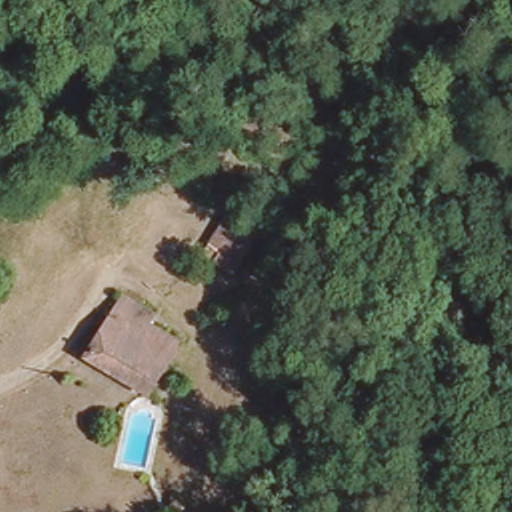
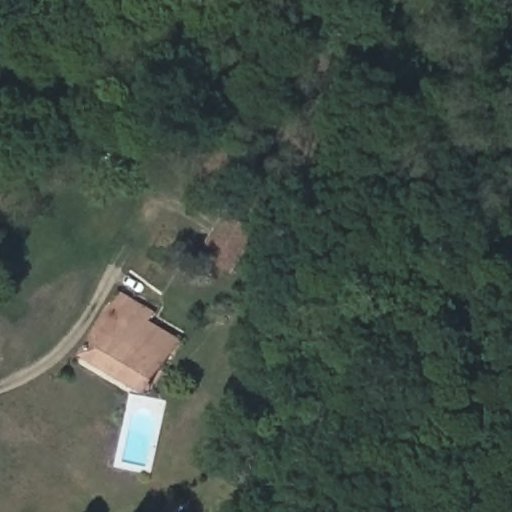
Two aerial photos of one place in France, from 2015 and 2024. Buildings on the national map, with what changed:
unchanged [(212,259),(215,249),(207,240),(228,210),(260,228),(234,273),(212,259)]
unchanged [(102,310),(112,290),(130,298),(127,305),(177,329),(150,386),(132,378),(80,353),(102,310)]

